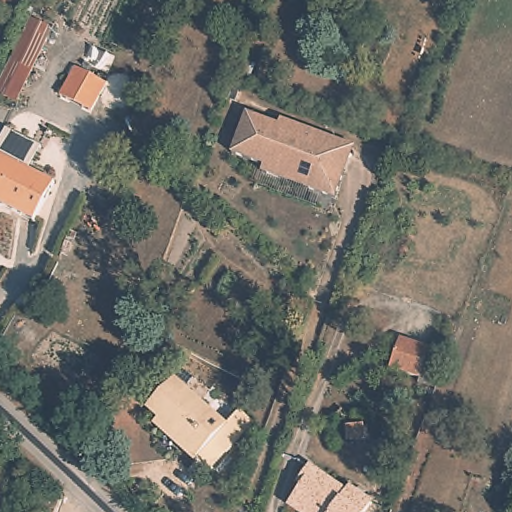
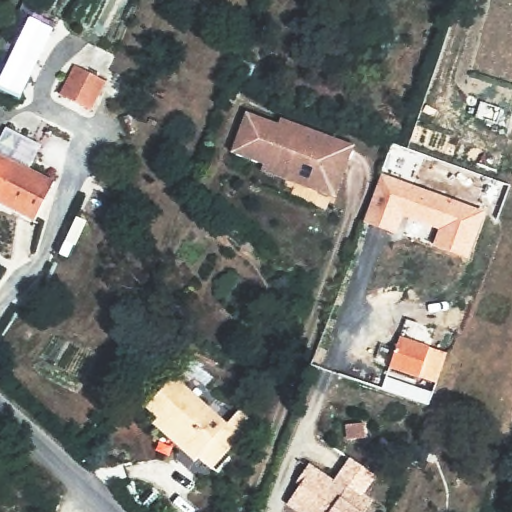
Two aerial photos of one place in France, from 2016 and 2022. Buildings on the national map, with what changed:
unchanged [(52,31),(16,104),(0,96),(0,84),(31,21),(52,31)]
unchanged [(91,113),(60,96),(74,67),(106,84),(91,113)]
unchanged [(344,173),(334,199),(330,198),(285,181),(261,172),(263,166),(231,154),(246,113),(278,125),(280,119),(337,140),(354,146),(344,173)]
unchanged [(41,148),(31,170),(55,184),(35,224),(0,206),(0,142),(6,130),(41,148)]
new [(379,177),(482,215),(466,258),(429,245),(435,228),(401,215),(394,234),(363,223),(379,177)]
unchanged [(419,380),(389,369),(399,339),(429,350),(419,380)]
unchanged [(226,427),(240,412),(254,424),(212,471),(198,459),(195,462),(154,425),(160,418),(147,408),(174,379),(226,427)]
unchanged [(388,461),(374,451),(381,441),(395,451),(388,461)]
unchanged [(349,488),(371,504),(365,512),(297,512),(288,506),(301,487),(297,483),(308,467),(346,493),(349,488)]

